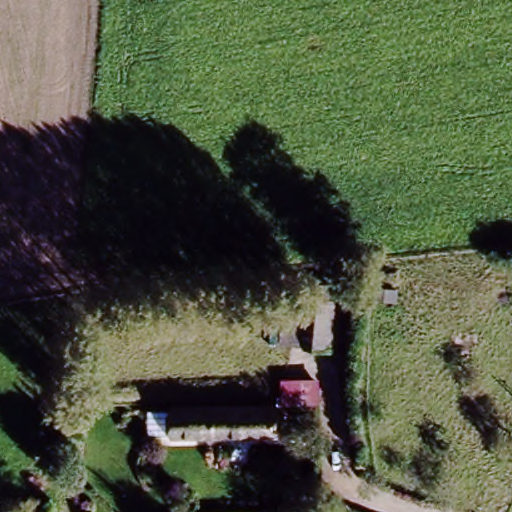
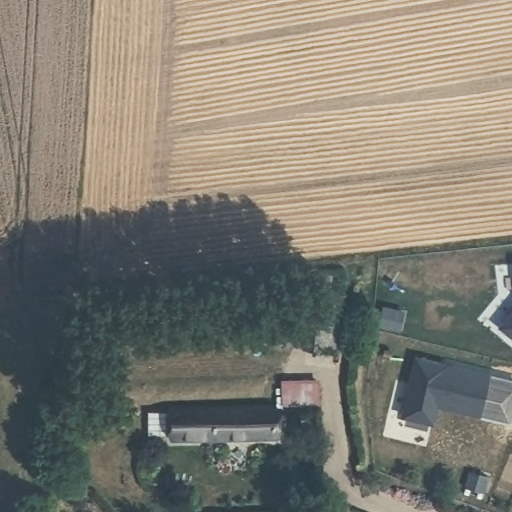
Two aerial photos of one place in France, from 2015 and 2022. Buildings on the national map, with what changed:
unchanged [(305,282),(336,280),(337,302),(348,301),(352,352),(310,353),(307,304),(305,282)]
new [(512,312),(512,337),(500,326),(512,312)]
new [(491,374),(481,417),(437,407),(434,424),(401,416),(415,357),(491,374)]
unchanged [(165,443),(162,409),(276,410),(275,442),(165,443)]

